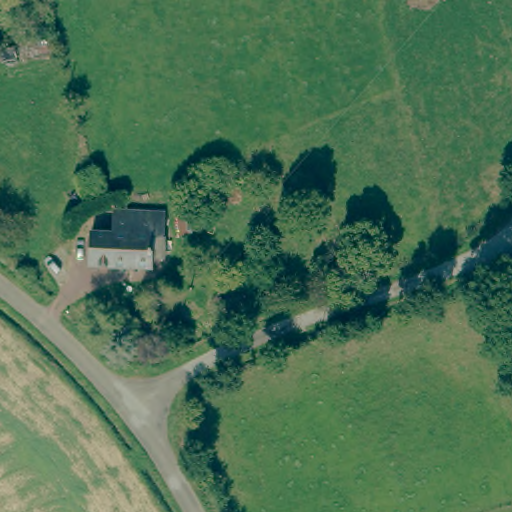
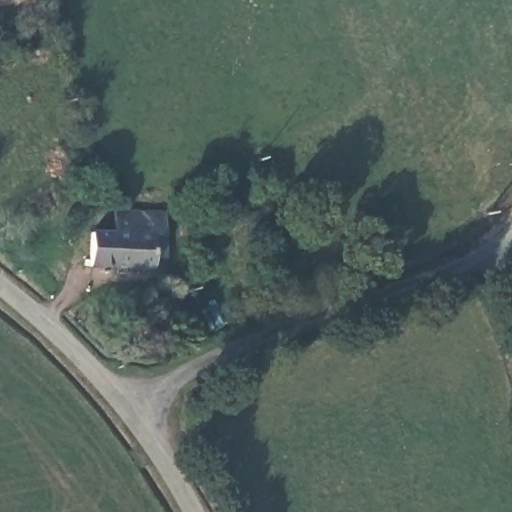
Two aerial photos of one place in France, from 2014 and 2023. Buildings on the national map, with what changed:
unchanged [(116,237),(116,213),(152,215),(166,216),(166,261),(150,260),(149,268),(93,267),(94,237),(116,237)]
unchanged [(204,241),(190,241),(192,216),(204,216),(204,241)]
unchanged [(509,340),(512,340),(512,350),(509,340)]

